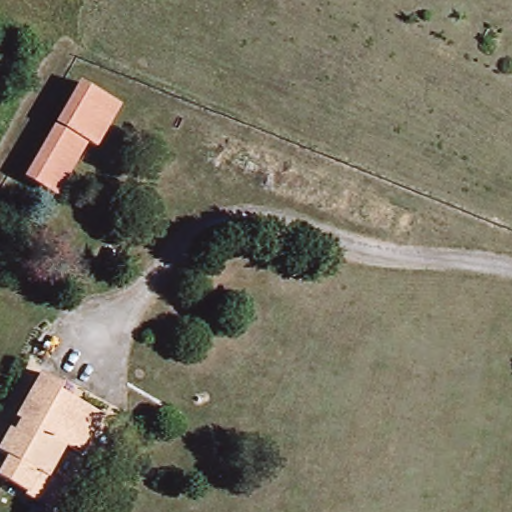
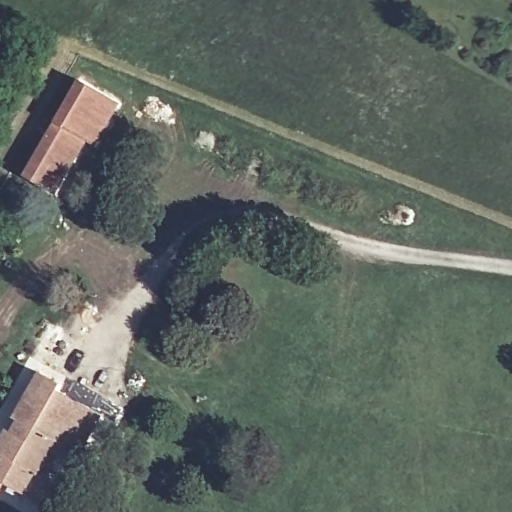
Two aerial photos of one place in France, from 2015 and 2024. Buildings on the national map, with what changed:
unchanged [(91,146),(81,141),(51,195),(20,176),(76,81),(116,104),(91,146)]
unchanged [(78,450),(66,443),(46,473),(59,481),(45,504),(19,488),(20,484),(0,470),(0,454),(3,450),(0,448),(0,424),(1,421),(15,428),(24,415),(11,407),(38,366),(61,380),(56,390),(100,416),(78,450)]

